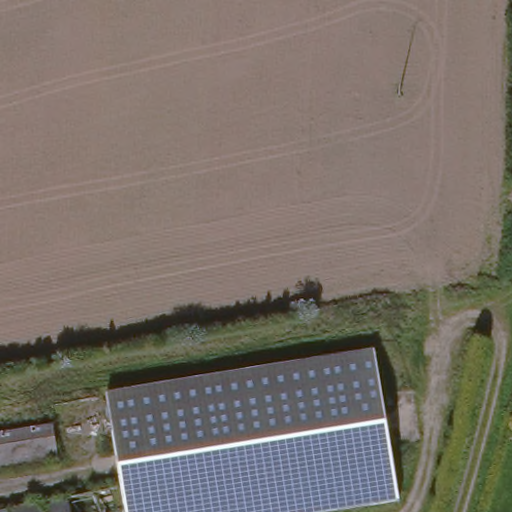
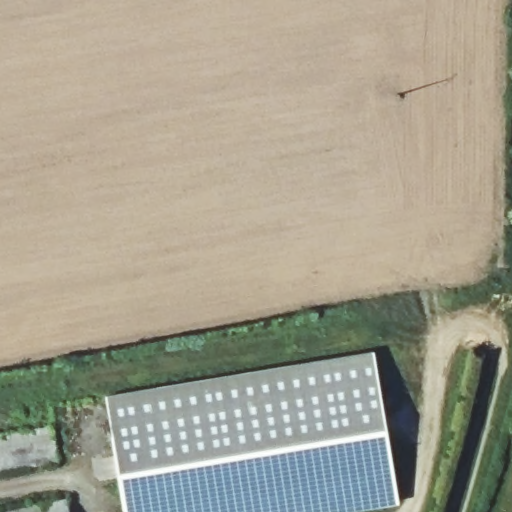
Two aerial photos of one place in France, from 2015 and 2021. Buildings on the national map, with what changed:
unchanged [(97,397),(370,357),(390,500),(319,512),(119,512),(114,494),(110,466),(97,397)]
unchanged [(0,469),(0,436),(47,428),(53,460),(0,469)]
unchanged [(63,512),(44,512),(62,507),(63,512)]

